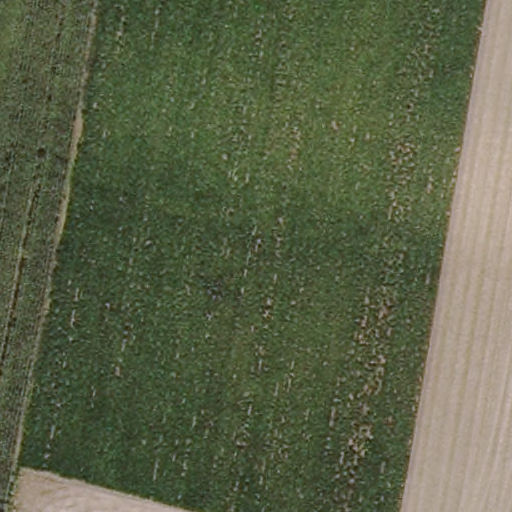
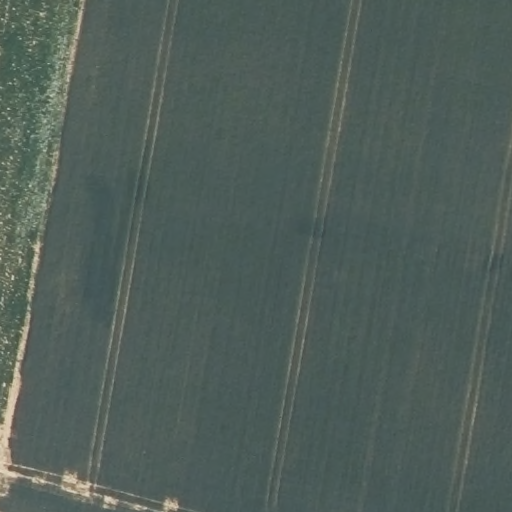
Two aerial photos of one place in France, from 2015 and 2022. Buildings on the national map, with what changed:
[]

